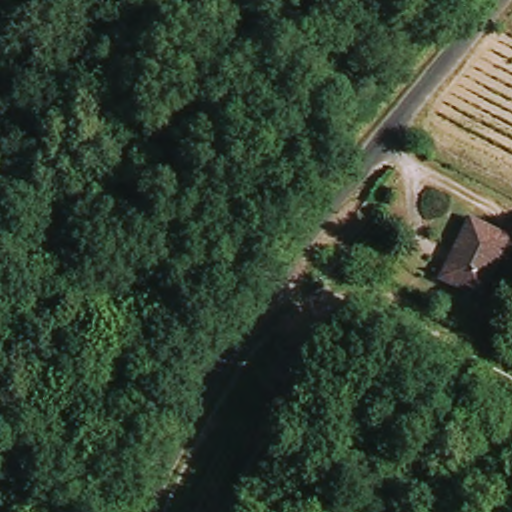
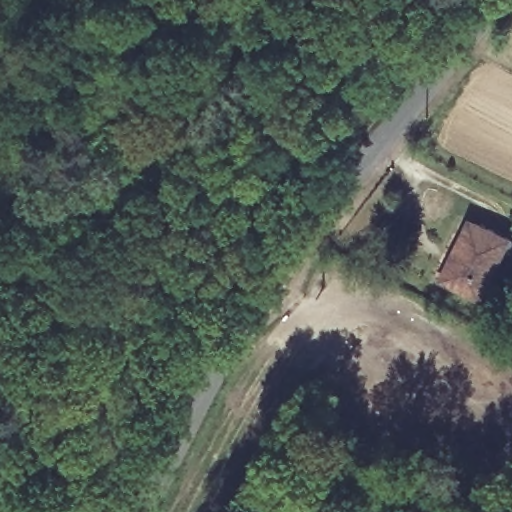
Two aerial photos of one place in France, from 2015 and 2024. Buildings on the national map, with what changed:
unchanged [(508,247),(479,298),(441,278),(469,226),(508,247)]

